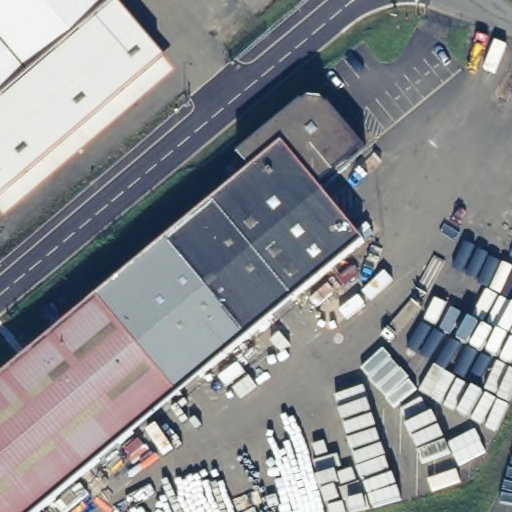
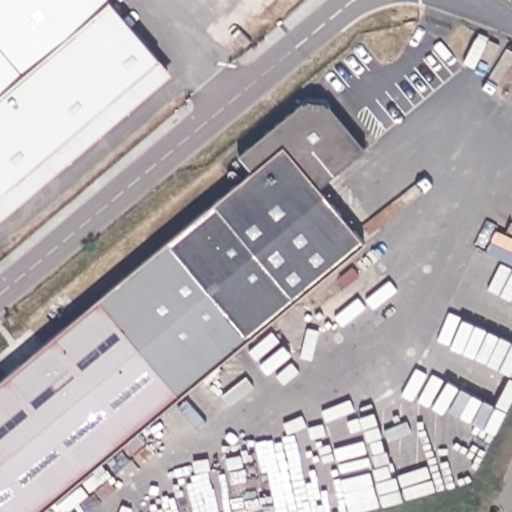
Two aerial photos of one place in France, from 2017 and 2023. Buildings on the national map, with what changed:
unchanged [(117,11),(157,57),(0,194),(0,0),(108,0),(117,11)]
unchanged [(250,169),(236,153),(299,100),(307,109),(319,110),(327,102),(363,146),(317,184),(364,240),(34,512),(0,512),(0,461),(0,382),(250,169)]

